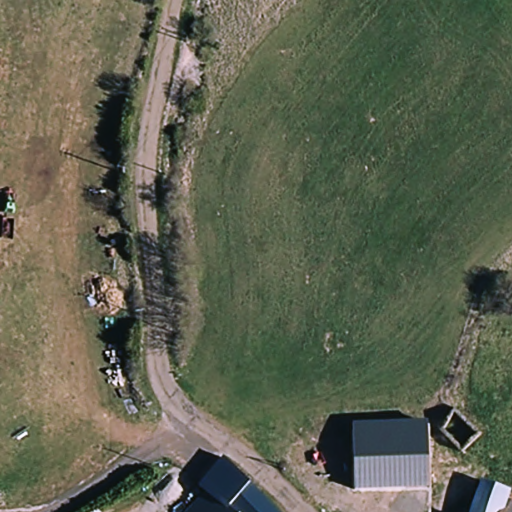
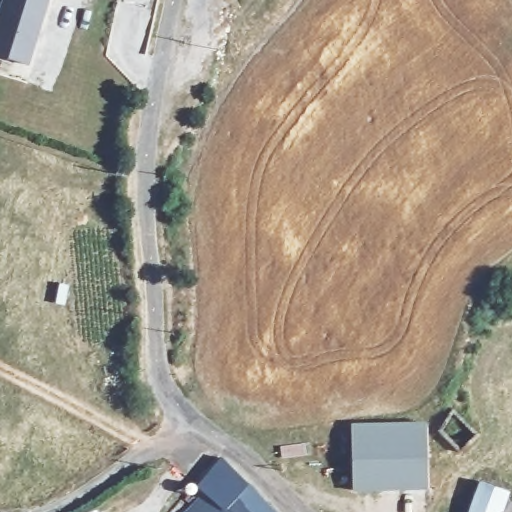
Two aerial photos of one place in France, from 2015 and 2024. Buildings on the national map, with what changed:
new [(49,0),(30,65),(0,57),(0,15),(5,0),(49,0)]
unchanged [(355,491),(354,424),(427,421),(429,488),(355,491)]
unchanged [(202,498),(194,489),(225,457),(272,512),(188,512),(202,498)]
unchanged [(469,490),(502,500),(501,503),(512,506),(512,512),(461,512),(469,490)]

